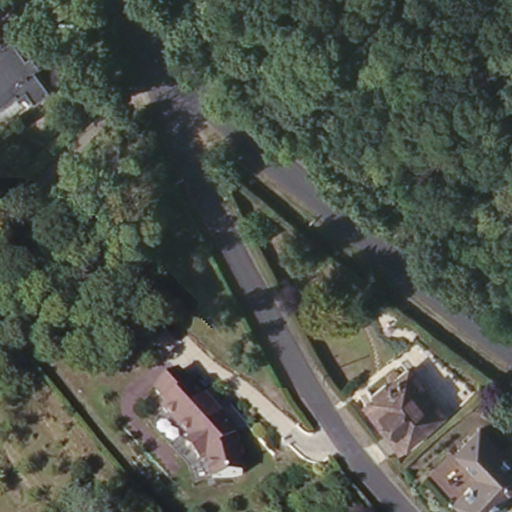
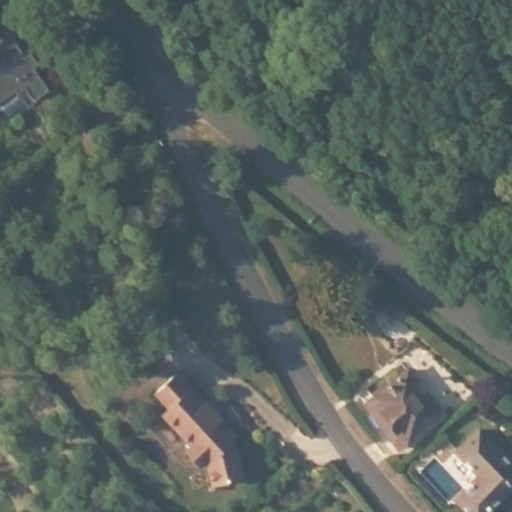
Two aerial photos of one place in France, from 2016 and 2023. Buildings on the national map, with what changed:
unchanged [(13,45),(21,55),(27,51),(38,63),(31,68),(46,88),(10,116),(0,103),(0,41),(8,34),(15,42),(13,45)]
unchanged [(200,460),(149,391),(178,368),(231,431),(240,476),(209,483),(200,460)]
unchanged [(360,401),(404,368),(438,413),(394,447),(360,401)]
unchanged [(512,464),(512,477),(476,512),(472,512),(452,491),(476,468),(454,444),(475,424),(512,464)]

